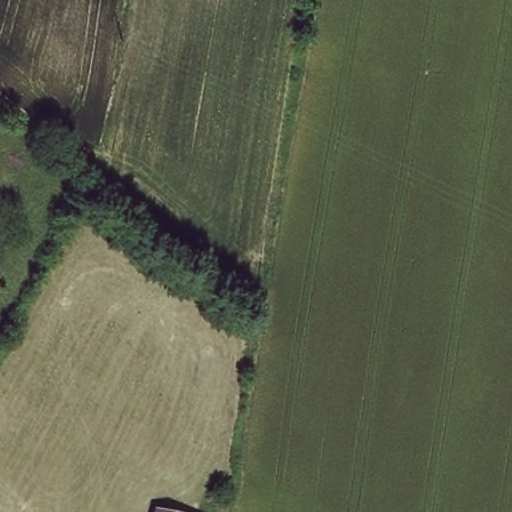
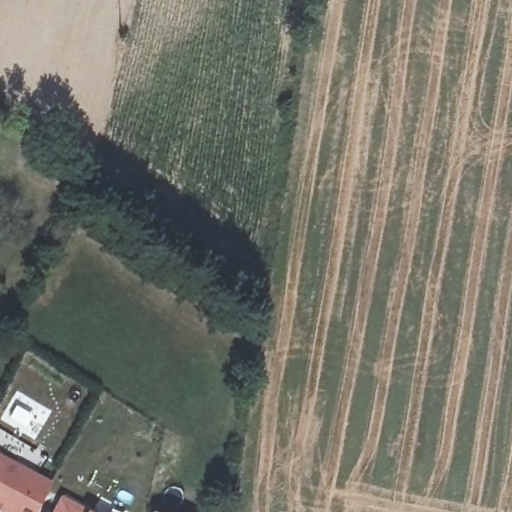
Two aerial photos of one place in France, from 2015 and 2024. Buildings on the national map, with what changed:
new [(51,491),(39,512),(0,512),(0,462),(51,491)]
new [(68,512),(53,512),(57,505),(68,512)]

